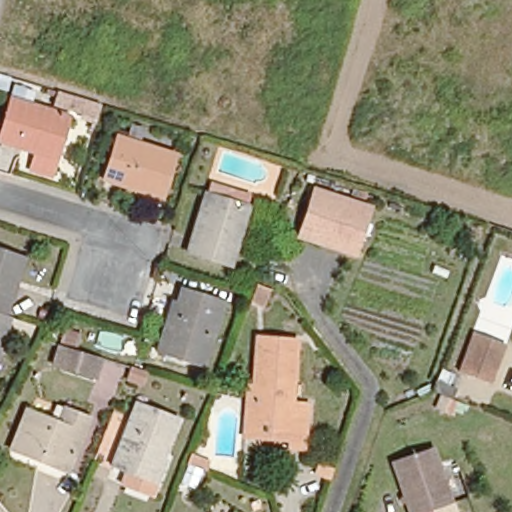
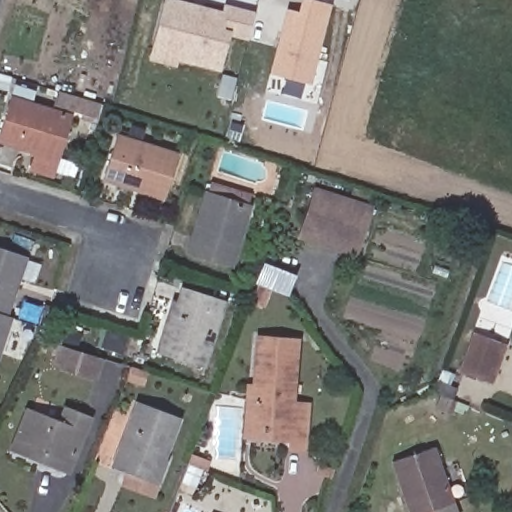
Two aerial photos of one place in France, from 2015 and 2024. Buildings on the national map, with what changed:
new [(289,7),(301,10),(305,0),(320,0),(331,3),(307,82),(270,71),(289,7)]
new [(166,1),(223,15),(225,7),(254,14),(249,34),(229,29),(220,65),(178,55),(176,61),(153,55),(166,1)]
unchanged [(0,142),(13,98),(71,115),(59,160),(40,154),(23,149),(0,142)]
unchanged [(147,191),(105,179),(119,133),(179,152),(168,188),(165,197),(147,191)]
unchanged [(223,193),(246,202),(226,262),(186,248),(211,177),(226,183),(223,193)]
unchanged [(365,210),(351,255),(297,237),(311,192),(365,210)]
unchanged [(0,316),(0,250),(15,255),(26,259),(19,280),(6,318),(0,316)]
unchanged [(198,366),(156,351),(172,299),(177,301),(182,288),(222,302),(198,366)]
unchanged [(6,318),(13,321),(0,361),(0,316),(6,318)]
unchanged [(474,337),(505,348),(492,385),(461,373),(474,337)]
unchanged [(248,428),(255,339),(292,342),(289,403),(302,404),(300,447),(283,447),(284,439),(247,436),(248,428)]
unchanged [(54,365),(60,344),(100,356),(94,376),(54,365)]
unchanged [(115,372),(119,360),(124,361),(140,366),(135,379),(115,372)]
unchanged [(423,382),(427,370),(451,380),(448,390),(452,391),(447,404),(429,397),(433,385),(423,382)]
unchanged [(39,460),(11,449),(28,407),(60,419),(67,404),(91,414),(72,465),(69,473),(39,460)]
unchanged [(171,463),(162,487),(118,468),(145,405),(183,420),(166,461),(171,463)]
unchanged [(190,445),(210,453),(207,463),(186,455),(190,445)]
unchanged [(411,512),(393,462),(433,448),(454,505),(434,512),(411,512)]

